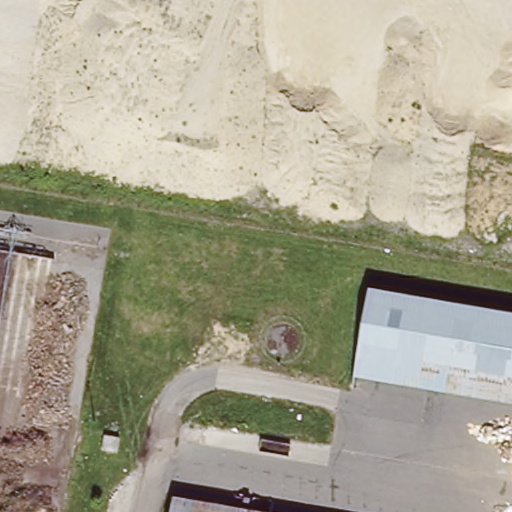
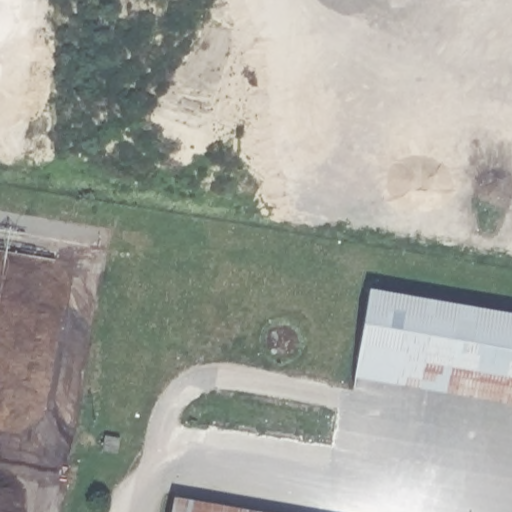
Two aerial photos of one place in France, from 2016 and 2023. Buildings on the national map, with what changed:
unchanged [(353,386),(367,292),(512,316),(512,409),(353,386)]
unchanged [(250,512),(171,512),(173,499),(250,512)]

